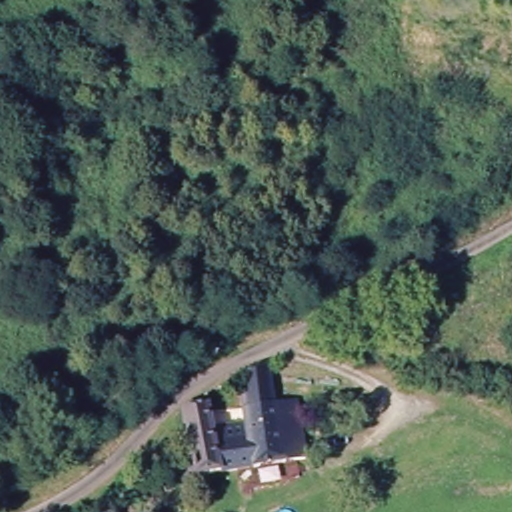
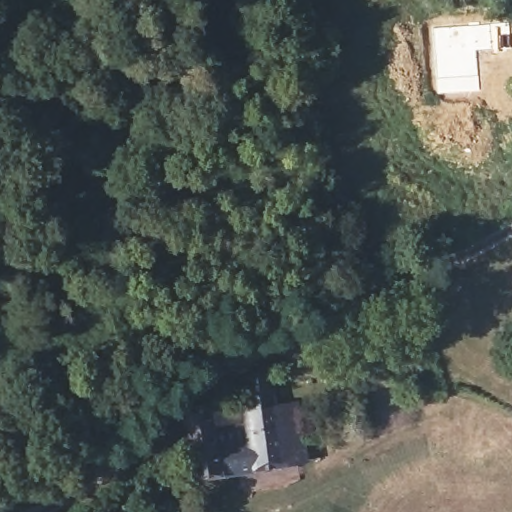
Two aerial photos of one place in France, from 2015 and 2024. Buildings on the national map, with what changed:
new [(437,94),(435,29),(490,24),(492,49),(477,51),(479,90),(437,94)]
unchanged [(270,412),(293,407),(303,466),(208,480),(183,484),(181,467),(186,467),(183,447),(178,415),(206,410),(210,437),(243,432),(236,382),(264,367),(270,412)]

